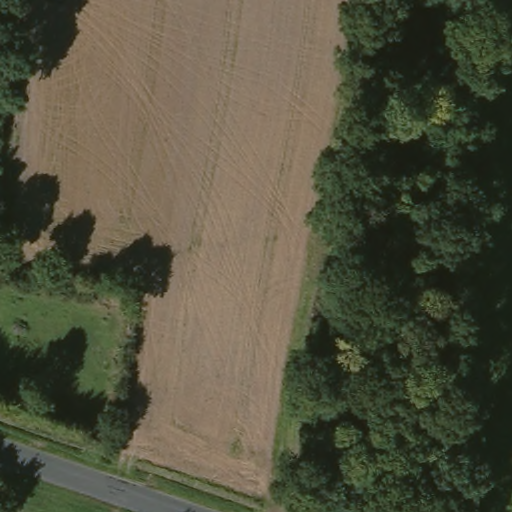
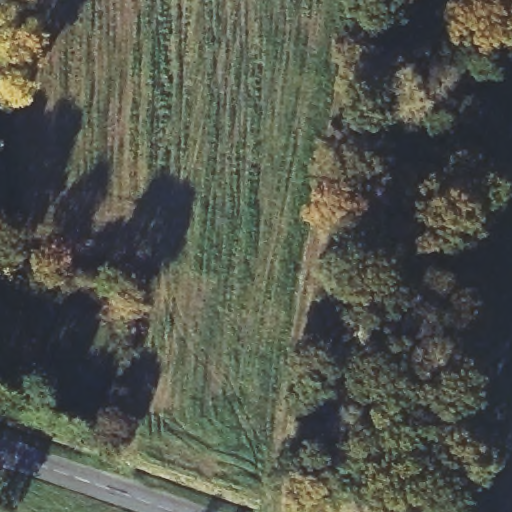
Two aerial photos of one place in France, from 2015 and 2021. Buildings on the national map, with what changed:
[]

